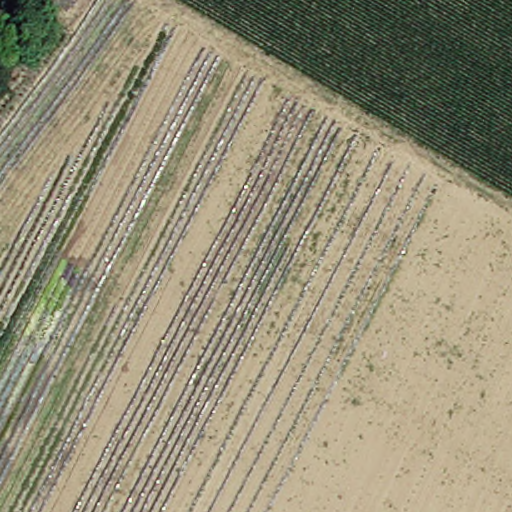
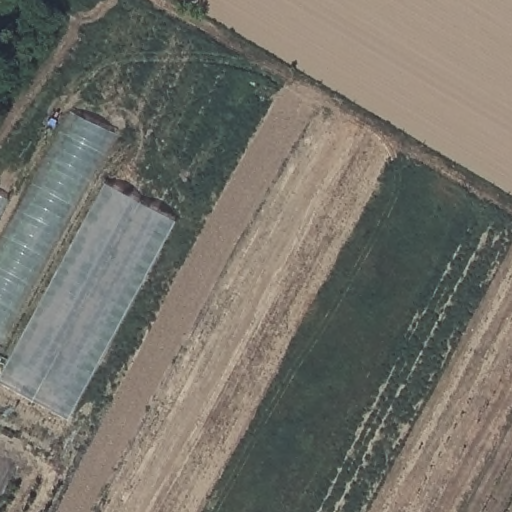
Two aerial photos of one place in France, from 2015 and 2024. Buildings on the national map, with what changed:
new [(72,114),(114,135),(0,346),(0,246),(72,114)]
new [(104,184),(175,222),(69,419),(0,382),(0,377),(104,184)]

